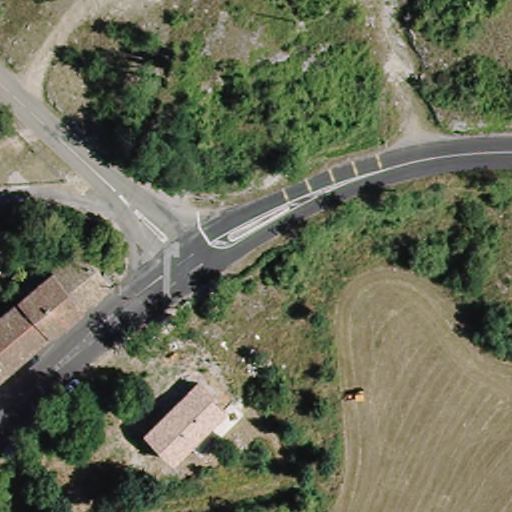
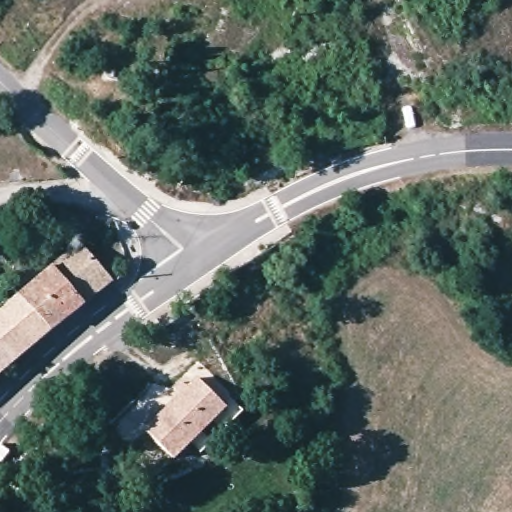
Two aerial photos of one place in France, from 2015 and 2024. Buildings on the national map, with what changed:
unchanged [(77,244),(98,271),(101,269),(110,279),(79,304),(49,267),(77,244)]
unchanged [(49,267),(79,304),(49,330),(16,295),(49,267)]
unchanged [(16,295),(49,330),(0,369),(0,308),(16,295)]
unchanged [(145,431),(197,379),(226,407),(174,459),(145,431)]

